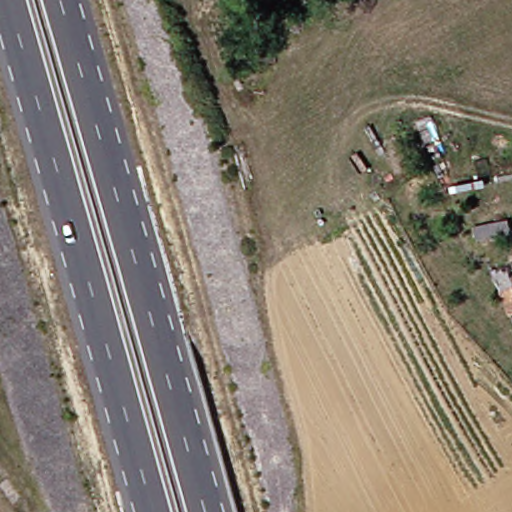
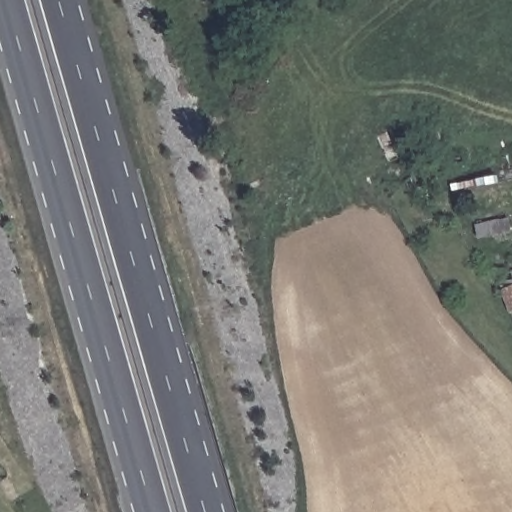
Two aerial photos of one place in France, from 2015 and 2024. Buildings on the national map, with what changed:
unchanged [(480,237),(476,225),(510,217),(512,225),(512,231),(480,237)]
unchanged [(499,275),(512,269),(512,309),(499,275)]

